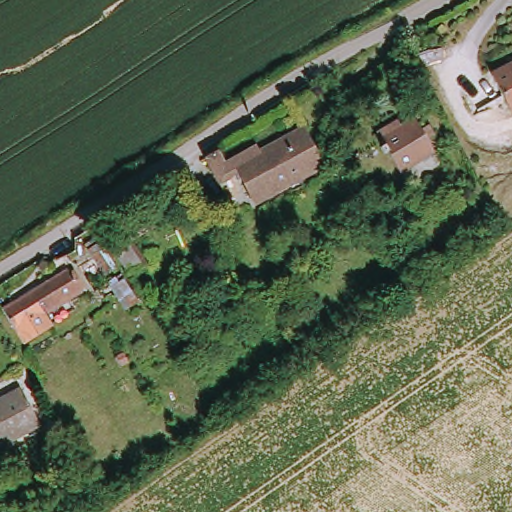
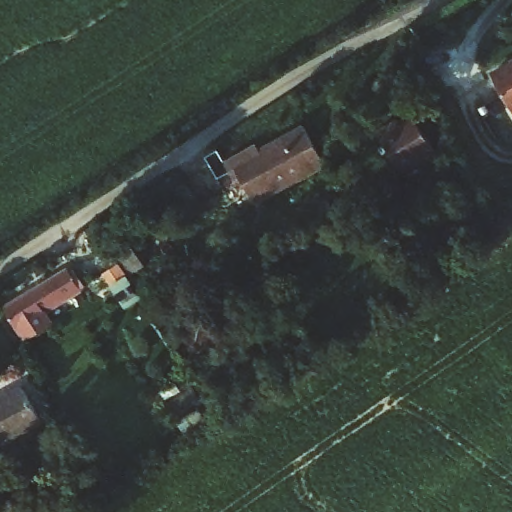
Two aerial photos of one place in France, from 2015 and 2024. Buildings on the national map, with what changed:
unchanged [(512,107),(494,72),(512,62),(512,107)]
unchanged [(398,118),(401,123),(416,115),(421,124),(429,119),(438,133),(429,138),(436,150),(399,171),(376,131),(398,118)]
unchanged [(285,139),(281,133),(293,126),(297,133),(313,123),(334,158),(266,201),(244,164),(285,139)]
unchanged [(225,149),(241,174),(228,181),(213,156),(225,149)]
unchanged [(103,221),(124,255),(109,264),(89,230),(103,221)]
unchanged [(49,253),(63,245),(65,265),(79,288),(14,329),(1,308),(51,273),(49,253)]
unchanged [(31,381),(50,418),(0,445),(0,398),(31,381)]

